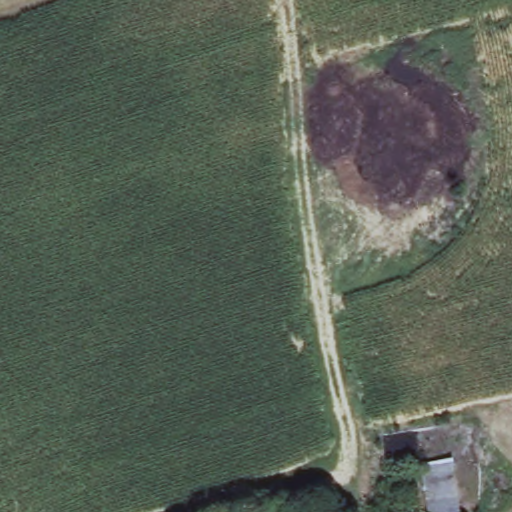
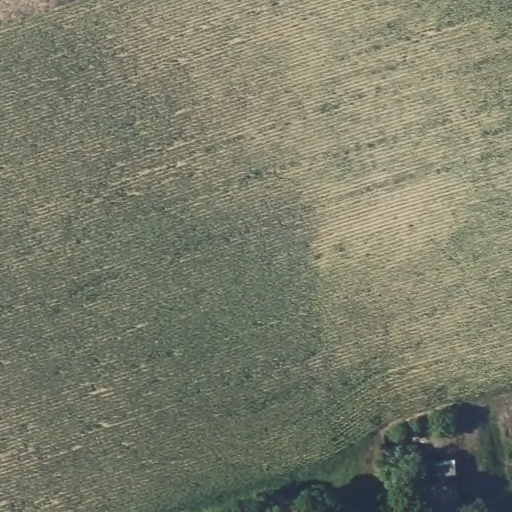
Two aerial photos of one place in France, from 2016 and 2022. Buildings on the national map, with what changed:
unchanged [(426,457),(463,453),(470,512),(434,512),(426,457)]

